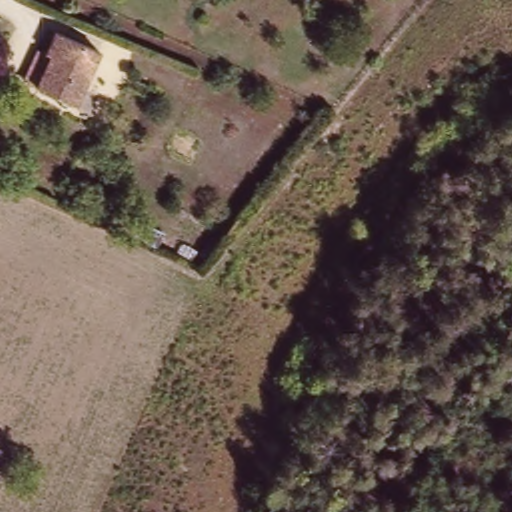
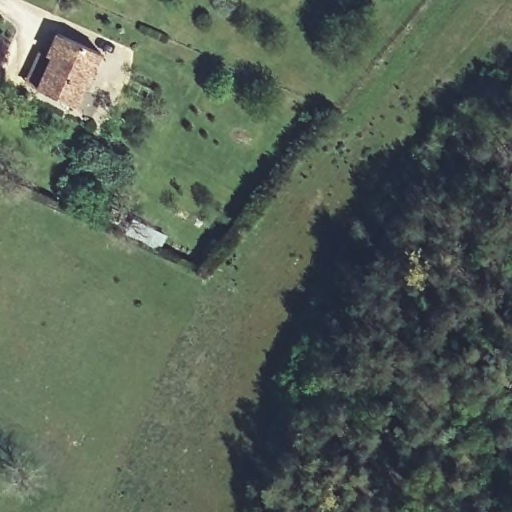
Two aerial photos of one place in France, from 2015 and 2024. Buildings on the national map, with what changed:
unchanged [(42,56),(50,60),(61,36),(108,54),(85,112),(44,98),(27,92),(42,56)]

